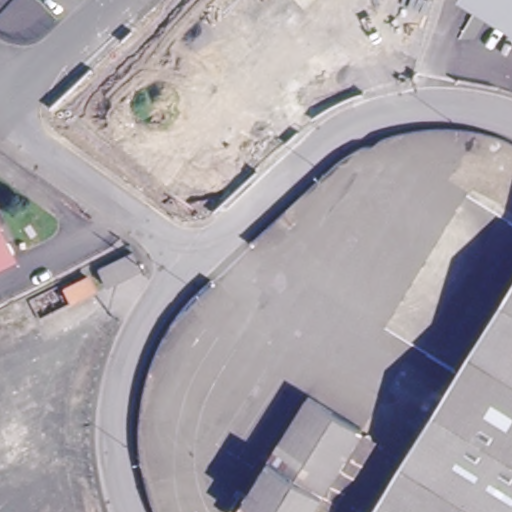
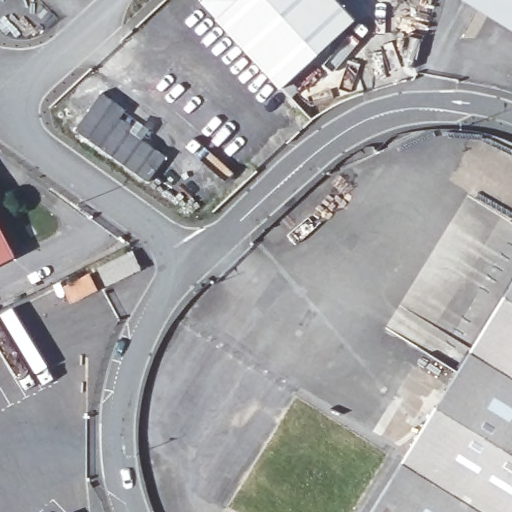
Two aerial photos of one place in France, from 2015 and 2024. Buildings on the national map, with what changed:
new [(338,0),(356,19),(280,88),(202,1),(203,0),(338,0)]
demolished [(291,0),(314,0),(302,12),(291,0)]
unchanged [(468,0),(512,0),(512,27),(468,0)]
demolished [(121,144),(84,110),(161,37),(194,75),(121,144)]
new [(100,93),(150,129),(144,138),(168,156),(148,182),(74,130),(100,93)]
unchanged [(0,253),(0,248),(2,252),(0,253)]
unchanged [(0,266),(0,253),(2,252),(7,263),(0,266)]
unchanged [(134,260),(143,277),(111,293),(103,276),(134,260)]
unchanged [(512,274),(512,512),(371,512),(512,274)]
demolished [(310,399),(368,435),(319,512),(240,512),(310,399)]

